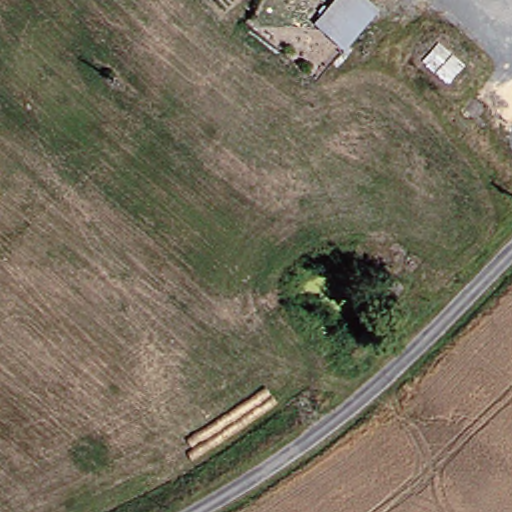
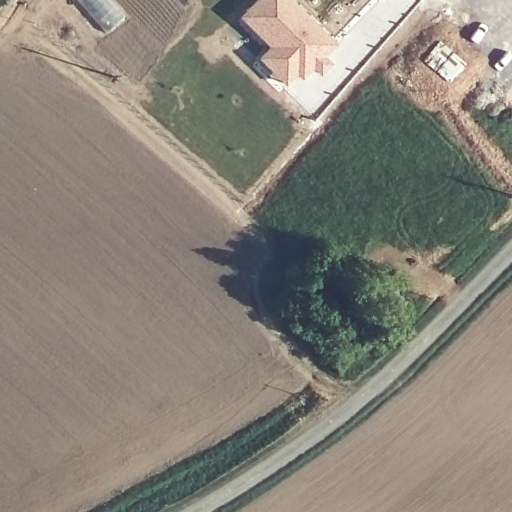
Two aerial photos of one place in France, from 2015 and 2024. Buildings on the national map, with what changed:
new [(328,58),(333,64),(322,76),(316,71),(306,81),(300,75),(288,87),(262,59),(272,48),(243,17),(259,0),(292,0),(338,46),(328,58)]
demolished [(355,49),(337,35),(363,0),(366,0),(382,14),(355,49)]
demolished [(472,64),(457,81),(435,62),(448,46),(472,64)]

